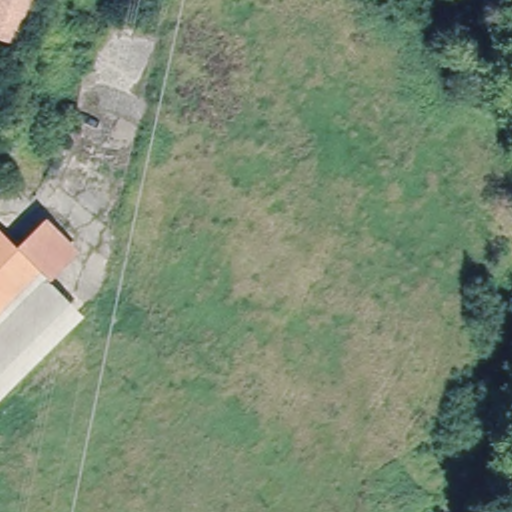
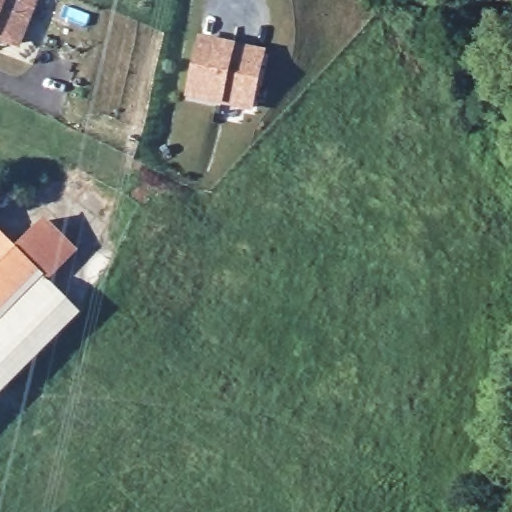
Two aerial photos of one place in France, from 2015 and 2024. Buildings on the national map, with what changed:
unchanged [(0,36),(0,0),(37,0),(19,44),(0,36)]
new [(254,112),(187,97),(200,35),(266,50),(254,112)]
unchanged [(43,225),(71,256),(74,260),(47,285),(16,252),(43,225)]
unchanged [(16,252),(47,285),(0,332),(0,236),(16,252)]
unchanged [(47,285),(80,315),(0,398),(0,332),(47,285)]

